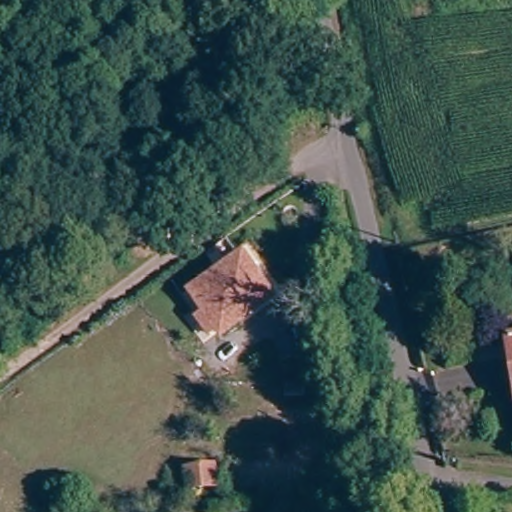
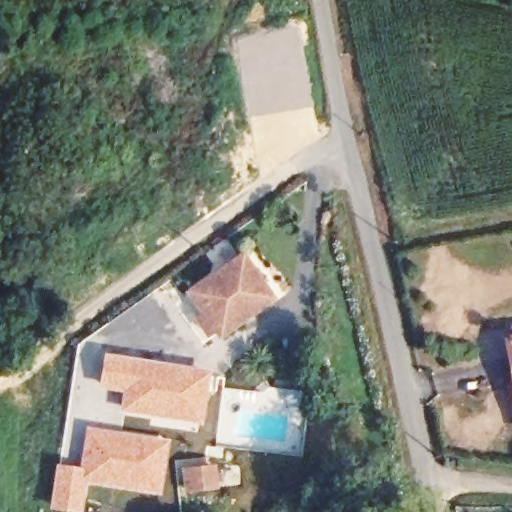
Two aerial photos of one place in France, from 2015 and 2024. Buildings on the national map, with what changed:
unchanged [(228,262),(243,252),(247,257),(274,295),(226,329),(223,325),(214,331),(204,317),(213,311),(199,291),(232,268),(228,262)]
unchanged [(508,364),(503,340),(512,338),(512,364),(508,364)]
new [(102,353),(212,369),(203,426),(118,413),(120,393),(97,389),(102,353)]
unchanged [(311,377),(311,391),(280,389),(281,376),(311,377)]
new [(78,466),(84,426),(170,439),(160,495),(88,485),(84,512),(61,512),(48,510),(56,463),(78,466)]
unchanged [(208,475),(210,494),(183,497),(180,478),(208,475)]

